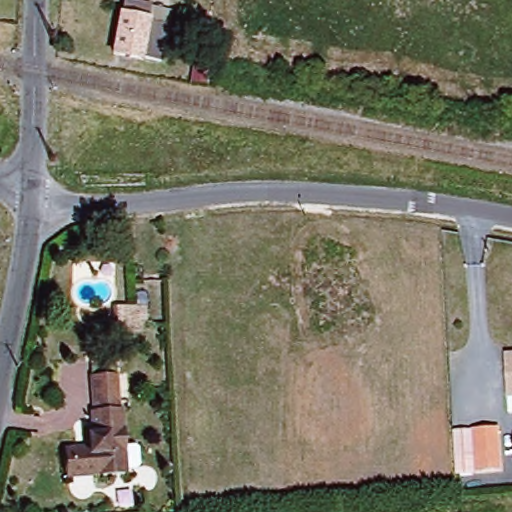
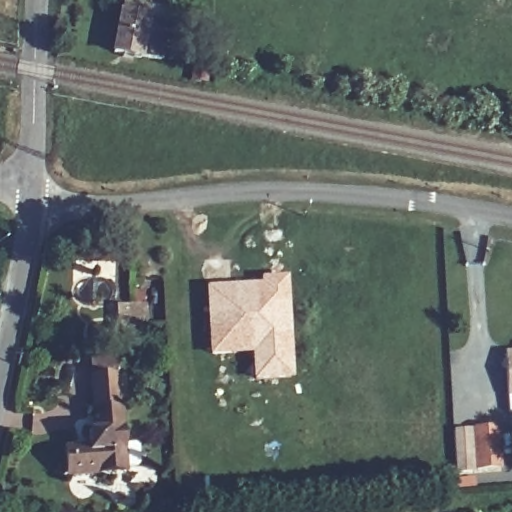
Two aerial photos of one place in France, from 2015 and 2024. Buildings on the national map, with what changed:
unchanged [(115,43),(122,5),(170,13),(162,52),(115,43)]
new [(261,282),(261,276),(288,275),(295,378),(254,380),(251,354),(210,355),(206,285),(261,282)]
new [(116,302),(133,302),(134,282),(149,283),(148,332),(116,332),(116,302)]
unchanged [(507,344),(512,344),(512,403),(508,403),(507,344)]
unchanged [(126,404),(129,404),(133,470),(64,474),(61,447),(89,445),(87,429),(97,428),(94,373),(125,371),(126,404)]
unchanged [(510,426),(512,459),(512,466),(468,469),(466,430),(510,426)]

